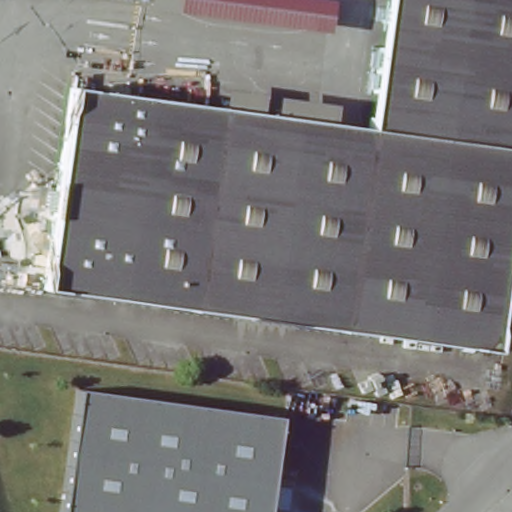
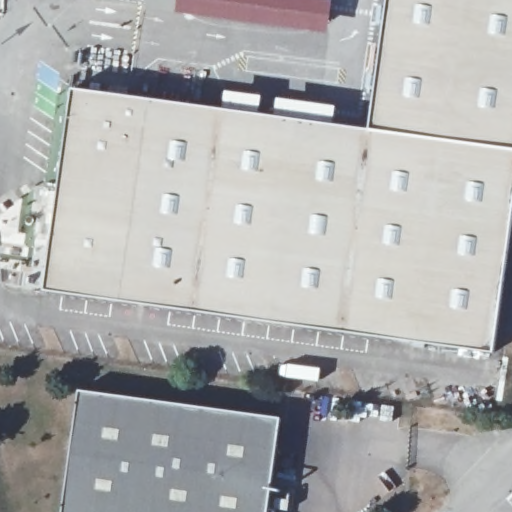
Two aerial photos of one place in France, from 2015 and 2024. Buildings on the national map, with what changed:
unchanged [(489,352),(41,289),(69,88),(366,129),(383,0),(512,0),(512,187),(489,352)]
unchanged [(148,6),(149,0),(332,0),(326,33),(148,6)]
unchanged [(65,512),(79,390),(285,414),(274,512),(65,512)]

